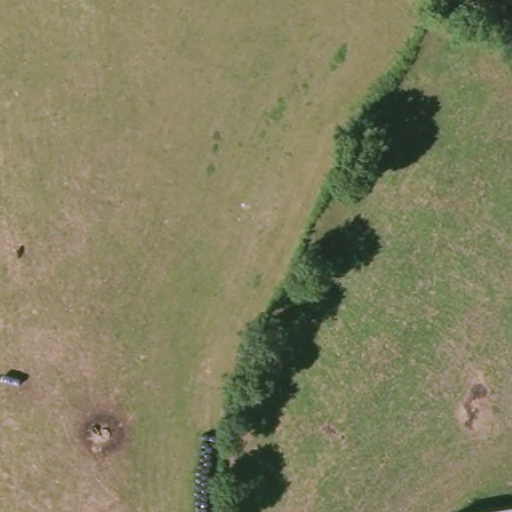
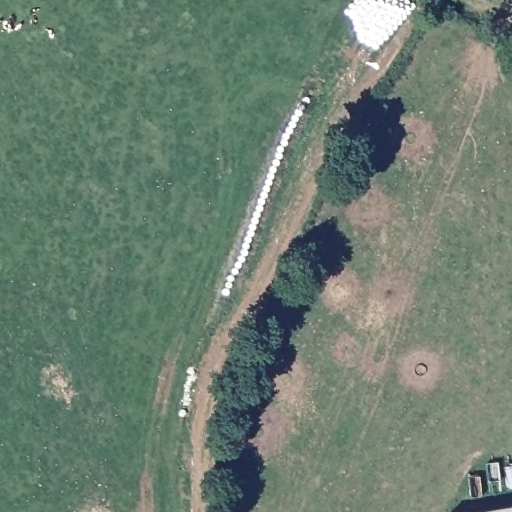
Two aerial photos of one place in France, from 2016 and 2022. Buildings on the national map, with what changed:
unchanged [(512,503),(512,512),(456,512),(512,503)]

